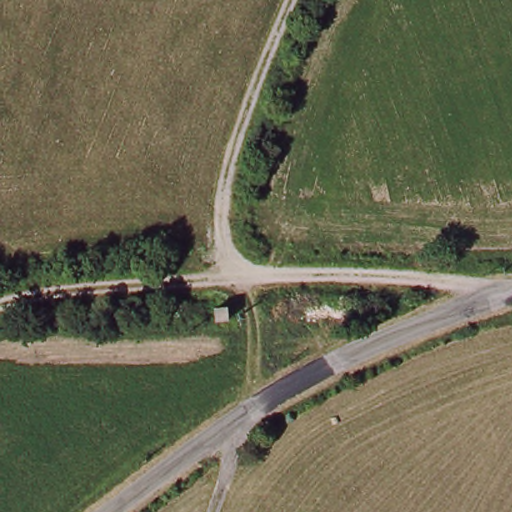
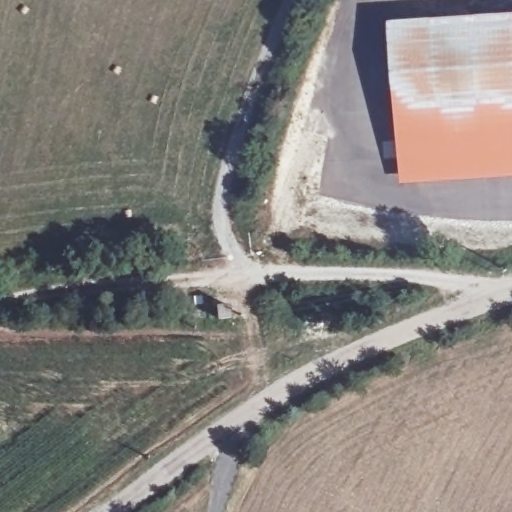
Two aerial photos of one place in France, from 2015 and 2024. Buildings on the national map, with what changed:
new [(398,184),(386,18),(512,10),(512,175),(398,184)]
unchanged [(234,318),(220,319),(220,305),(234,304),(234,318)]

